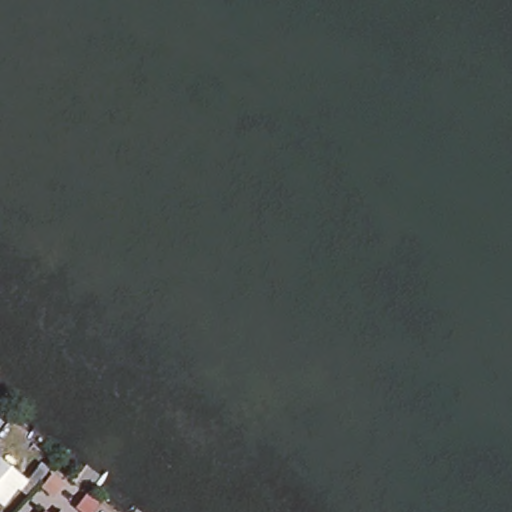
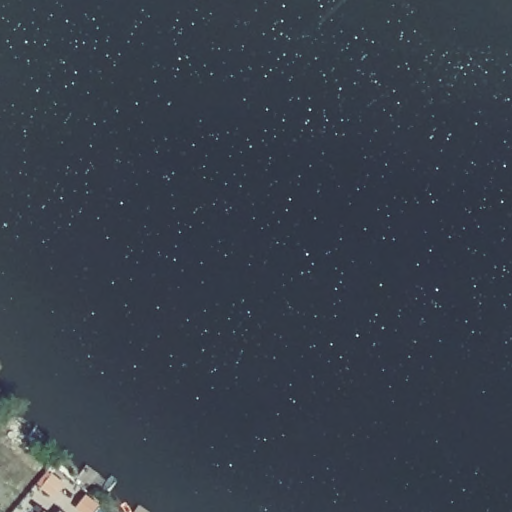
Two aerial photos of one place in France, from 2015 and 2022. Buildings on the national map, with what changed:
unchanged [(44,511),(46,512),(42,512),(44,511)]
unchanged [(60,512),(58,512),(59,511),(60,512)]

